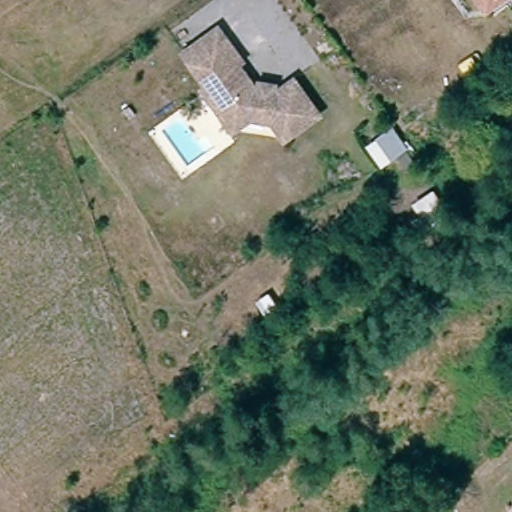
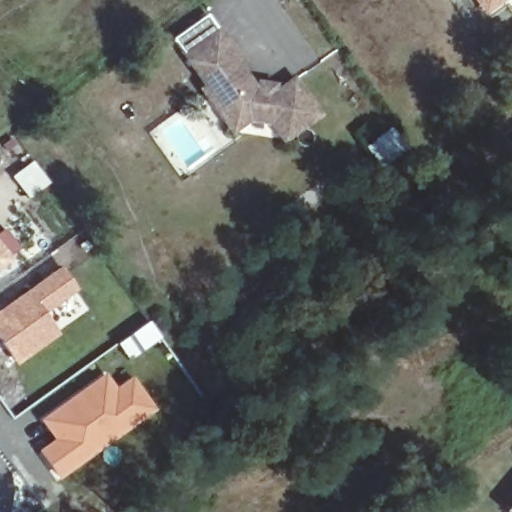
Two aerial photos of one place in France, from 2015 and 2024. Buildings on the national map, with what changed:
unchanged [(471,0),(503,0),(482,16),(471,0)]
unchanged [(226,62),(242,86),(246,87),(247,80),(262,83),(261,89),(264,90),(281,77),(305,112),(271,137),(259,120),(237,116),(220,129),(190,86),(195,83),(181,63),(172,50),(206,26),(215,39),(229,59),(226,62)]
unchanged [(512,87),(512,93),(509,89),(512,87)]
unchanged [(377,163),(362,142),(377,132),(391,152),(377,163)]
new [(12,258),(0,268),(0,243),(12,258)]
new [(61,264),(77,288),(44,313),(59,335),(16,367),(0,346),(0,308),(61,264)]
new [(148,319),(162,338),(129,363),(115,343),(148,319)]
new [(115,386),(132,375),(155,409),(57,478),(37,449),(52,438),(38,419),(104,371),(115,386)]
unchanged [(512,512),(508,512),(507,511),(512,505),(512,512)]

